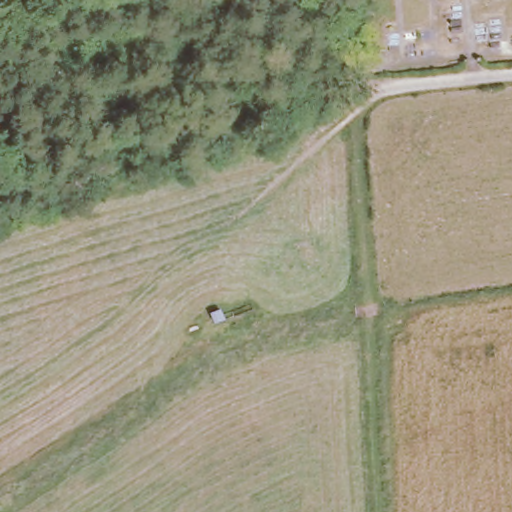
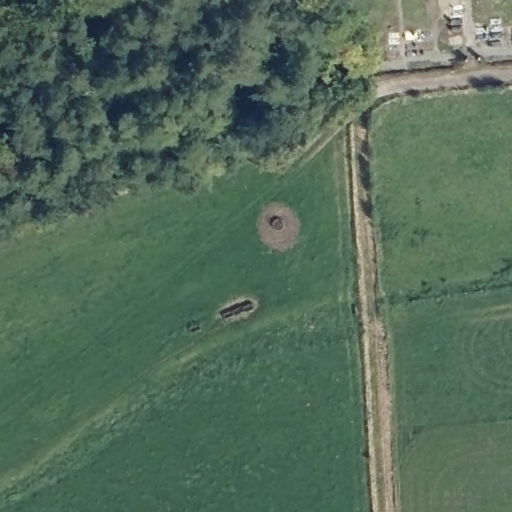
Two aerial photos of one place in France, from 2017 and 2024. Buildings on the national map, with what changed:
[]

